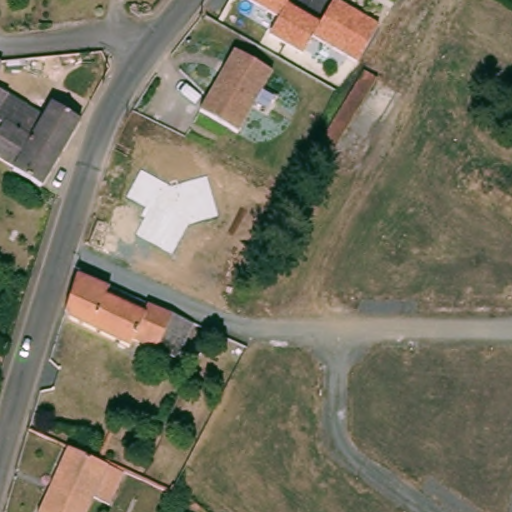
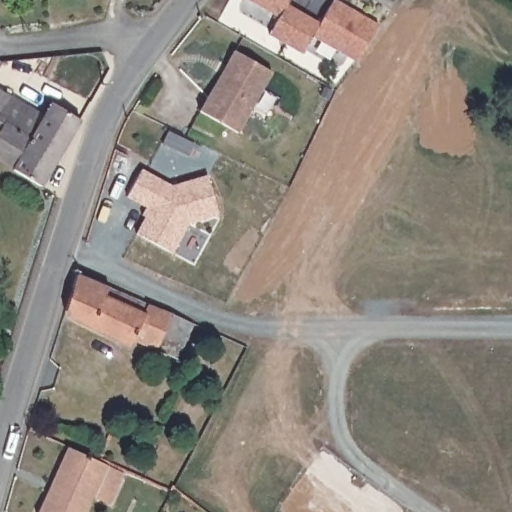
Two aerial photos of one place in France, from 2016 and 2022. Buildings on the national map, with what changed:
unchanged [(285,4),(320,24),(334,2),(378,26),(357,64),(310,39),(302,54),(269,36),(280,19),(246,0),(288,0),(285,4)]
unchanged [(270,73),(237,134),(199,112),(232,52),(270,73)]
unchanged [(312,145),(361,70),(373,77),(324,152),(312,145)]
unchanged [(0,98),(0,93),(2,95),(0,98)]
unchanged [(38,116),(45,104),(74,121),(35,185),(34,186),(5,170),(7,167),(3,164),(0,162),(0,98),(2,95),(38,116)]
new [(142,171),(172,188),(207,178),(219,218),(189,227),(172,256),(136,236),(150,211),(127,198),(142,171)]
demolished [(135,236),(129,250),(135,253),(130,262),(86,244),(96,219),(135,236)]
unchanged [(182,321),(166,357),(124,338),(120,345),(81,325),(59,314),(55,308),(67,271),(182,321)]
unchanged [(77,512),(30,512),(60,445),(99,462),(77,512)]
unchanged [(174,489),(170,496),(156,490),(160,482),(175,488),(174,489)]

